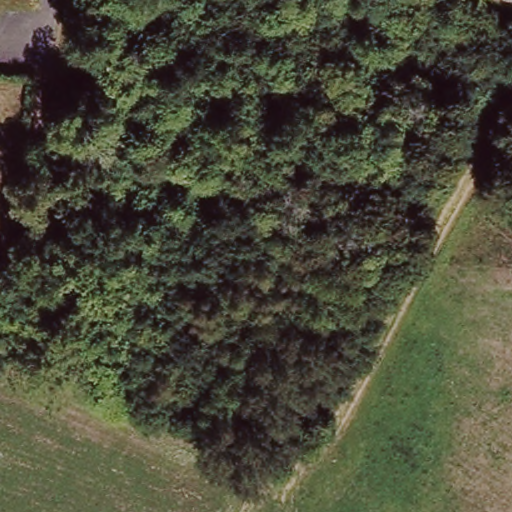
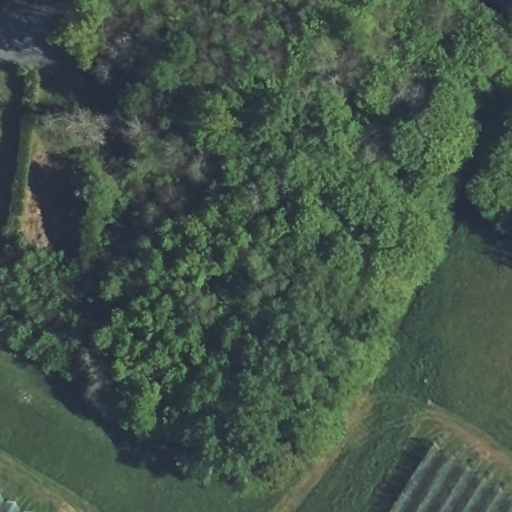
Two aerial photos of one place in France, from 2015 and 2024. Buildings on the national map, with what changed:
[]

